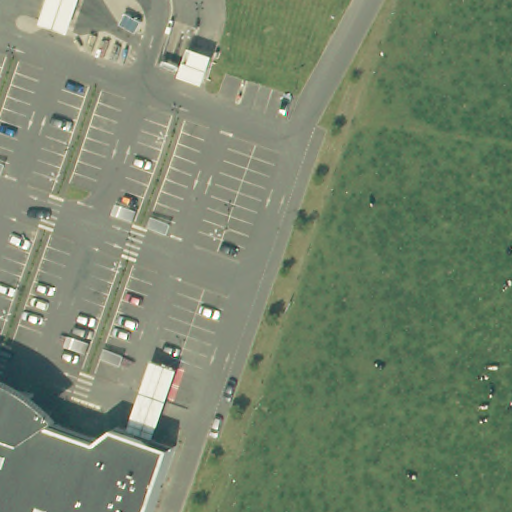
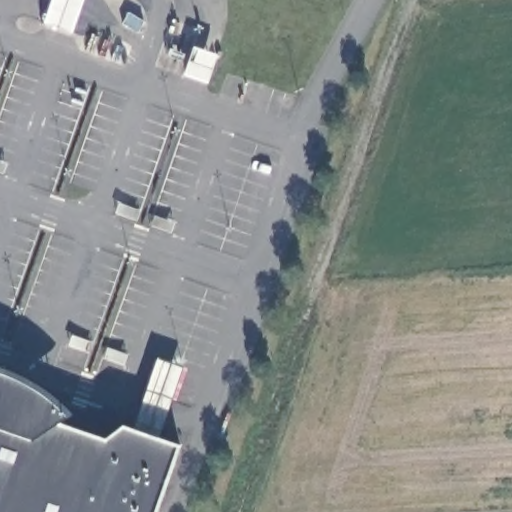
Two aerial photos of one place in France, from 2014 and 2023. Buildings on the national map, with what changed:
unchanged [(71,32),(43,24),(50,0),(82,0),(71,32)]
unchanged [(218,55),(208,84),(184,76),(194,47),(218,55)]
unchanged [(18,374),(37,384),(54,397),(71,415),(57,422),(103,438),(122,424),(132,428),(156,357),(184,366),(159,437),(179,445),(155,512),(0,512),(0,367),(18,374)]

